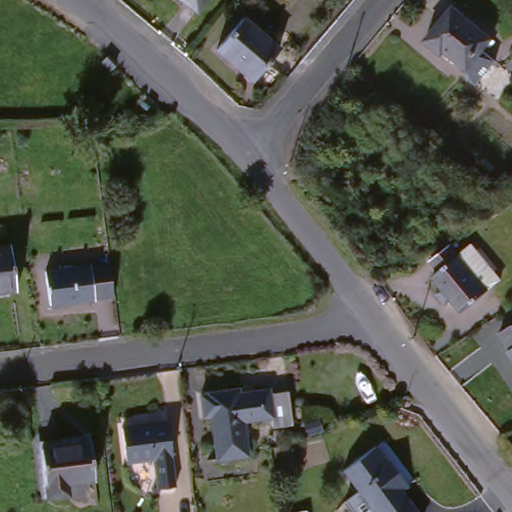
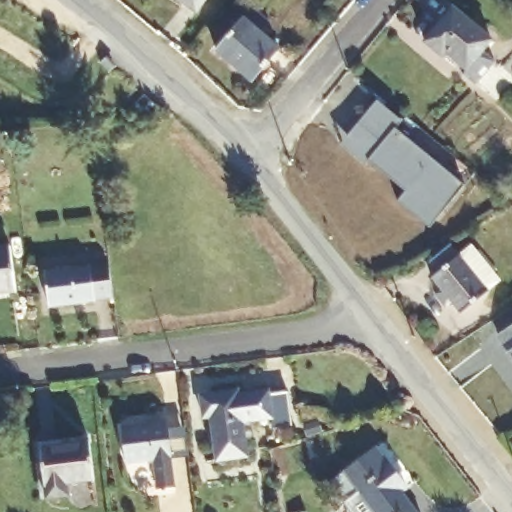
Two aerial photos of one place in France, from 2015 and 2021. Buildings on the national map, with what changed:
unchanged [(209,0),(188,22),(163,0),(209,0)]
unchanged [(456,77),(465,66),(449,52),(440,61),(423,45),(430,37),(448,16),(484,45),(476,55),(491,65),(480,78),(472,89),(456,77)]
unchanged [(264,36),(254,48),(275,64),(251,93),(210,60),(245,20),(264,36)]
new [(377,101),(399,121),(393,128),(464,185),(429,227),(397,202),(404,192),(367,161),(365,163),(340,144),(377,101)]
unchanged [(11,301),(0,301),(0,254),(7,254),(11,301)]
unchanged [(461,266),(474,257),(498,293),(484,302),(458,320),(448,305),(441,309),(433,297),(439,292),(433,282),(442,276),(435,265),(453,254),(461,266)]
unchanged [(111,311),(46,313),(46,274),(107,271),(111,311)]
unchanged [(512,334),(512,363),(499,343),(512,334)]
unchanged [(218,463),(214,421),(199,422),(197,398),(237,396),(238,403),(284,399),(290,437),(263,438),(263,428),(243,430),(246,462),(218,463)]
unchanged [(171,495),(153,496),(150,478),(125,478),(121,435),(166,431),(171,495)]
unchanged [(88,488),(69,490),(70,508),(53,510),(52,504),(46,504),(43,492),(39,487),(35,455),(86,450),(88,488)]
unchanged [(344,482),(378,457),(406,493),(399,502),(407,512),(369,512),(344,482)]

